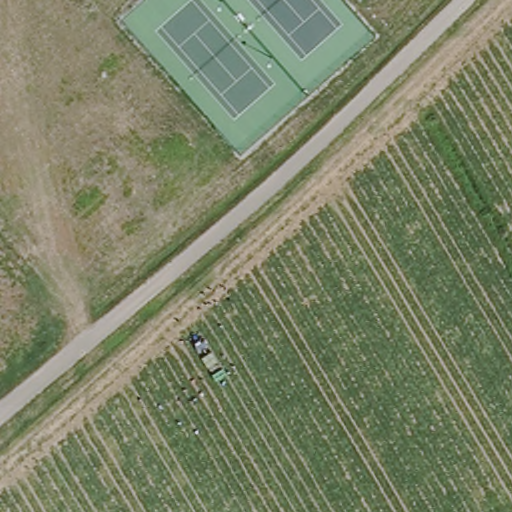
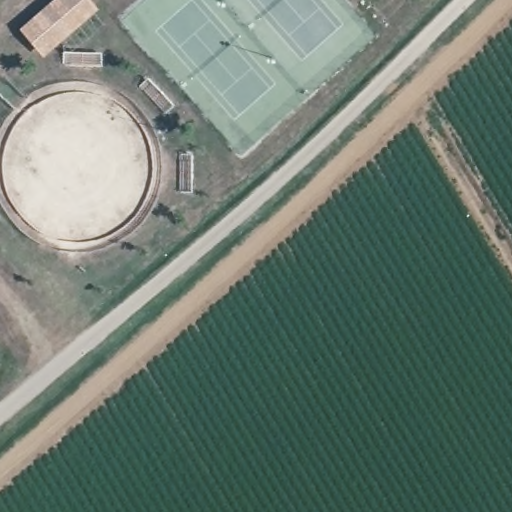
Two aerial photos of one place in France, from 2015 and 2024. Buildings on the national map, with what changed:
new [(100,9),(46,55),(21,27),(53,0),(92,0),(100,9)]

